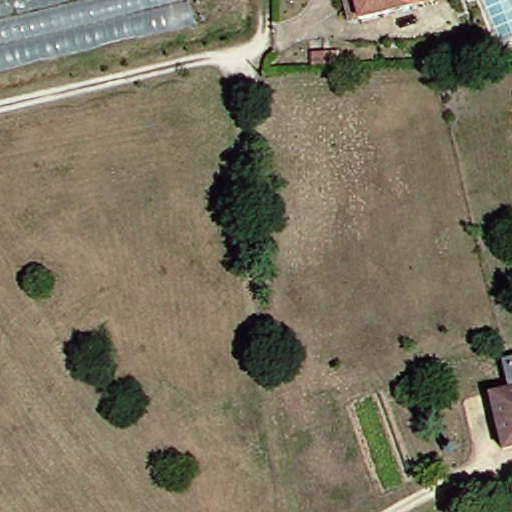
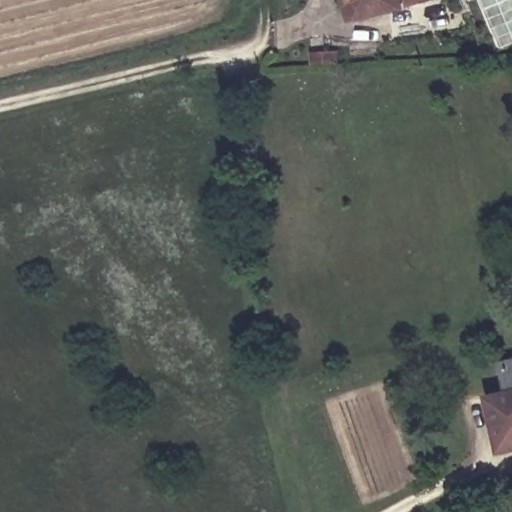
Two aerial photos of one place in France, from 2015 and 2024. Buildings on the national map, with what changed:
demolished [(221,21),(0,75),(0,25),(100,0),(217,0),(221,21)]
unchanged [(340,0),(431,0),(432,4),(355,21),(346,24),(340,0)]
unchanged [(497,364),(512,360),(512,451),(500,453),(485,396),(505,390),(497,364)]

